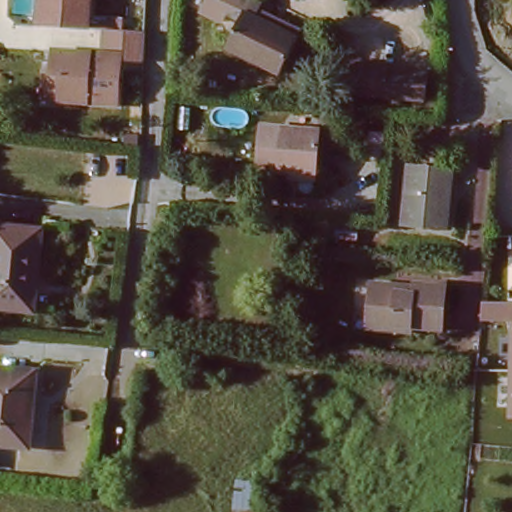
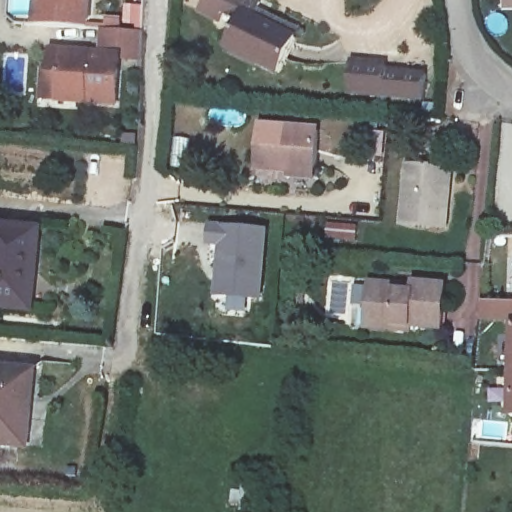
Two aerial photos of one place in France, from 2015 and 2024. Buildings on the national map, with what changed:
unchanged [(30,20),(30,0),(82,0),(80,23),(30,20)]
unchanged [(230,25),(213,18),(222,0),(239,0),(253,6),(247,22),(286,40),(271,72),(220,48),(230,25)]
unchanged [(133,25),(132,45),(90,43),(90,23),(133,25)]
unchanged [(122,62),(120,109),(61,107),(63,79),(48,78),(50,58),(122,62)]
unchanged [(344,91),(345,70),(376,74),(376,68),(415,72),(413,98),(381,92),(380,98),(344,91)]
unchanged [(318,130),(314,171),(289,168),(287,180),(252,177),(258,125),(318,130)]
unchanged [(414,165),(459,171),(452,226),(408,220),(414,165)]
new [(216,298),(220,248),(208,246),(210,223),(269,229),(264,302),(216,298)]
unchanged [(26,307),(0,304),(0,226),(36,231),(26,307)]
unchanged [(360,280),(389,282),(388,289),(407,291),(409,277),(441,280),(436,327),(393,322),(392,332),(356,327),(360,280)]
unchanged [(508,418),(511,322),(483,321),(483,301),(512,302),(512,418),(508,418)]
unchanged [(23,415),(28,416),(26,442),(0,439),(0,364),(28,368),(23,415)]
unchanged [(267,476),(264,512),(230,512),(234,473),(267,476)]

